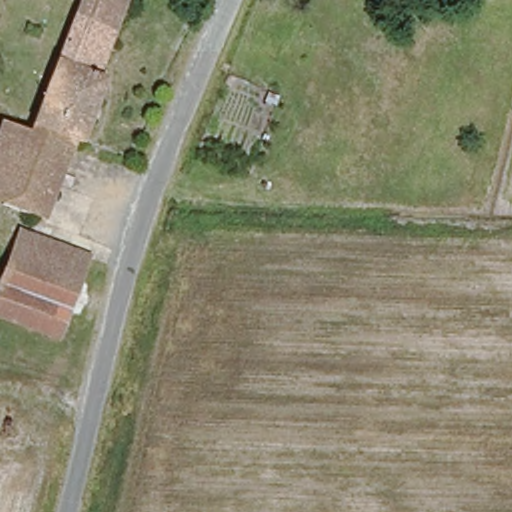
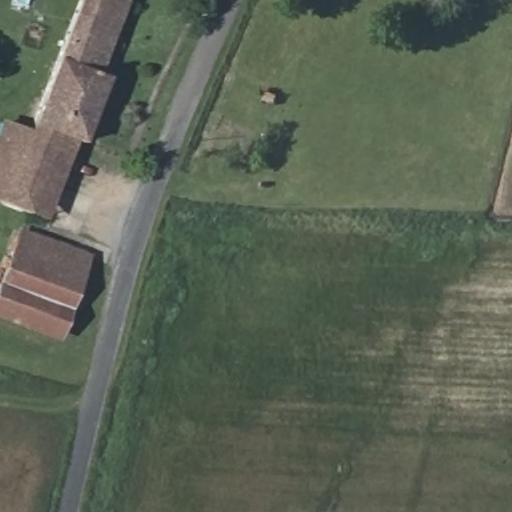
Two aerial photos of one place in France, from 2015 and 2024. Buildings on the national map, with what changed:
unchanged [(112,55),(80,139),(73,137),(42,219),(0,205),(0,137),(6,120),(30,126),(78,0),(120,0),(101,50),(112,55)]
unchanged [(2,281),(20,230),(83,257),(65,304),(2,281)]
unchanged [(0,314),(0,286),(2,281),(65,304),(54,336),(0,314)]

